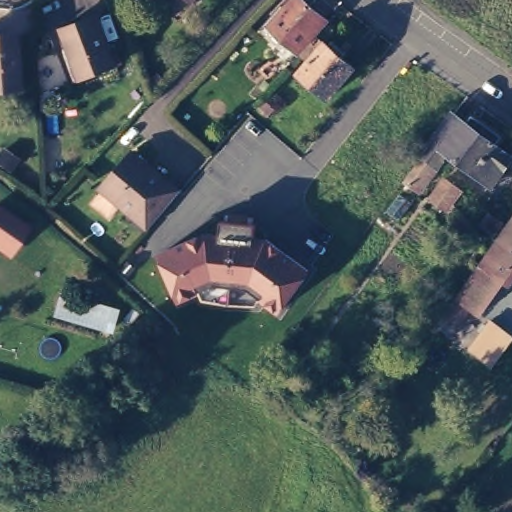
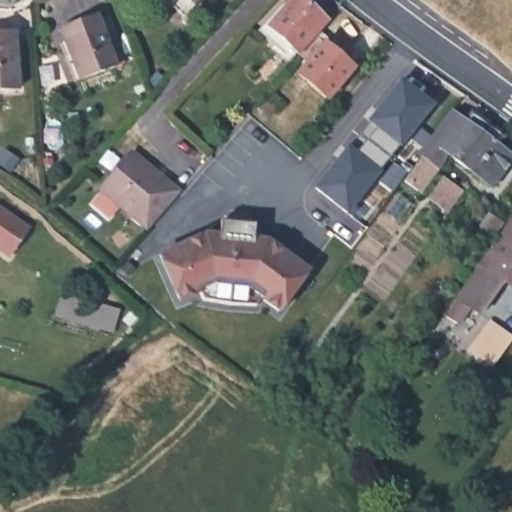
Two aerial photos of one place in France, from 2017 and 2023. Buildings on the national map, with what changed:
unchanged [(185,0),(178,7),(171,0),(185,0)]
unchanged [(275,26),(299,0),(309,0),(332,20),(296,59),(276,41),(282,33),(275,26)]
unchanged [(97,14),(116,66),(80,80),(61,28),(97,14)]
unchanged [(0,89),(0,35),(15,34),(18,88),(0,89)]
unchanged [(333,46),(337,41),(344,47),(351,53),(347,57),(358,68),(333,98),(303,73),(313,62),(305,54),(321,36),(333,46)]
new [(401,81),(431,105),(389,159),(358,134),(401,81)]
unchanged [(274,92),(284,100),(269,117),(260,108),(274,92)]
unchanged [(421,154),(452,113),(466,124),(472,115),(478,119),(502,137),(495,146),(512,158),(491,186),(446,152),(437,164),(438,165),(419,191),(403,180),(422,155),(421,154)]
new [(358,134),(389,159),(346,212),(316,188),(358,134)]
unchanged [(114,214),(96,199),(107,186),(105,184),(134,150),(137,146),(158,164),(185,187),(154,224),(125,200),(114,214)]
unchanged [(430,199),(444,180),(461,191),(446,211),(430,199)]
unchanged [(12,261),(0,254),(0,203),(34,225),(12,261)]
unchanged [(280,313),(263,300),(258,306),(201,302),(201,295),(180,305),(155,253),(202,235),(218,235),(219,222),(257,225),(257,239),(268,239),(313,270),(280,313)]
unchanged [(457,323),(446,316),(512,223),(512,273),(506,282),(505,281),(481,314),(469,305),(457,323)]
unchanged [(105,334),(56,321),(65,292),(111,305),(105,334)]
unchanged [(493,324),(504,333),(507,329),(512,333),(509,337),(512,340),(512,342),(495,366),(474,350),(493,324)]

